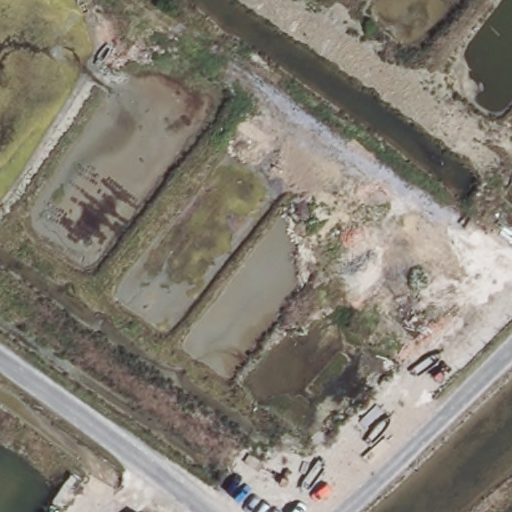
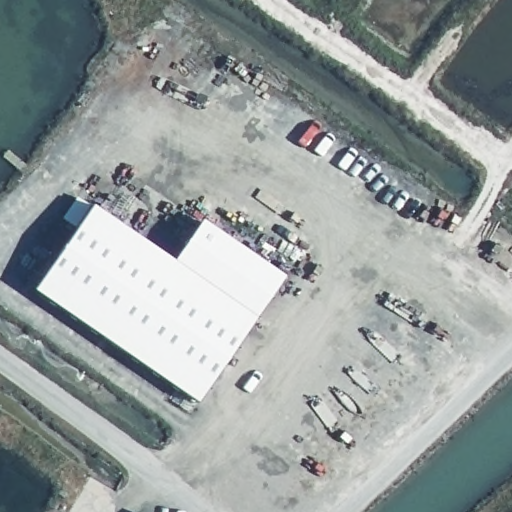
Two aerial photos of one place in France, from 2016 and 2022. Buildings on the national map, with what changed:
new [(195,404),(32,291),(75,228),(61,219),(77,197),(91,206),(172,261),(201,221),(283,277),(195,404)]

